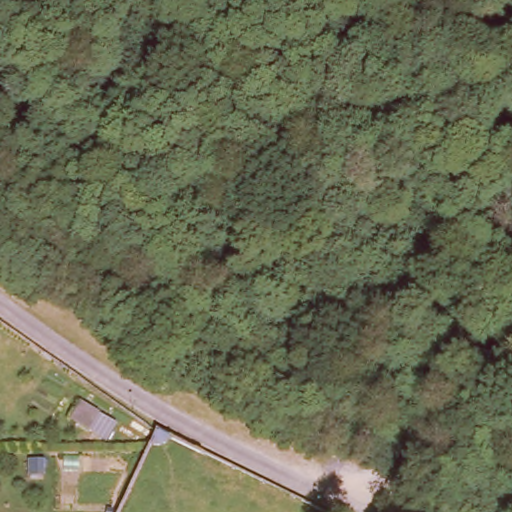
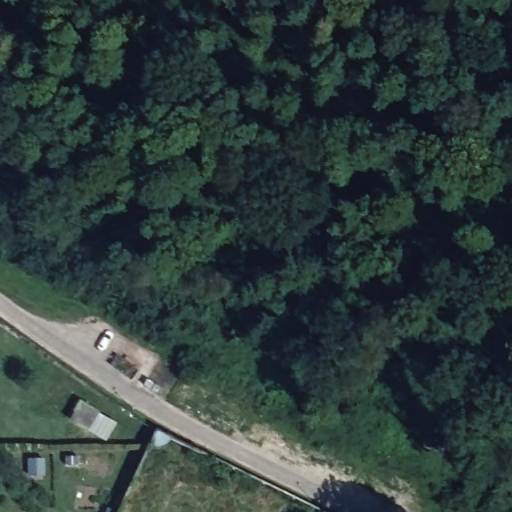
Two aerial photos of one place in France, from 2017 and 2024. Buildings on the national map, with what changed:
unchanged [(97,415),(87,432),(68,420),(79,404),(97,415)]
unchanged [(155,429),(169,437),(164,444),(155,447),(147,445),(155,429)]

